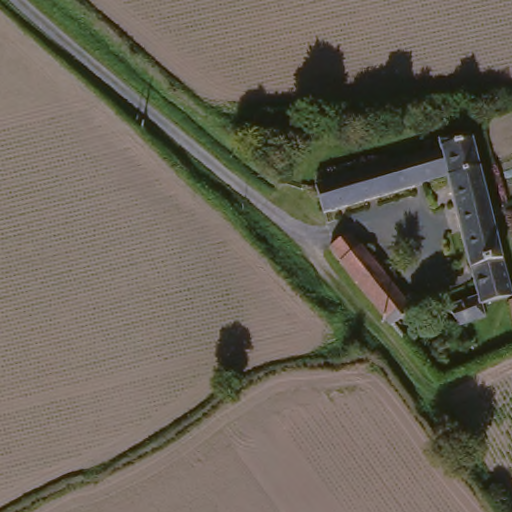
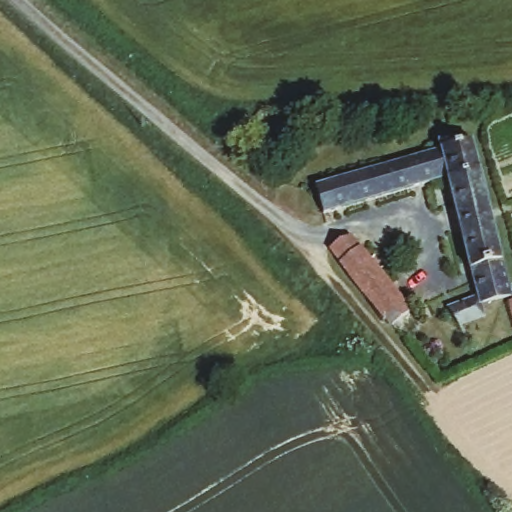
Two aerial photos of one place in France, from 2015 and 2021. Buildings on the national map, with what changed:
unchanged [(305,135),(285,158),(244,126),(266,103),(305,135)]
unchanged [(438,146),(436,136),(451,133),(454,141),(473,136),(512,290),(512,292),(482,303),(487,316),(464,324),(457,299),(478,293),(448,174),(324,208),(314,180),(438,146)]
unchanged [(349,232),(409,309),(392,324),(331,248),(349,232)]

